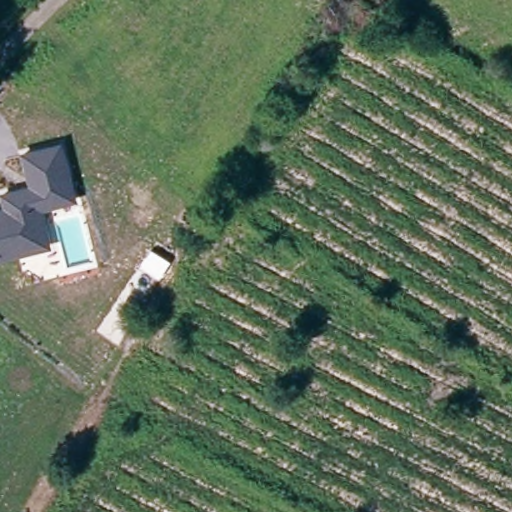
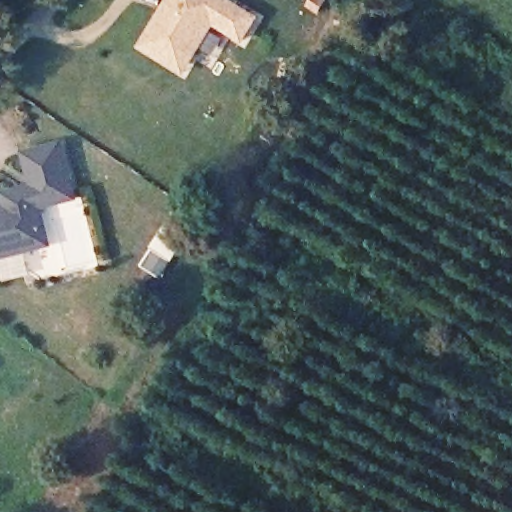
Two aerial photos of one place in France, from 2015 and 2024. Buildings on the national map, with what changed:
new [(244,44),(214,27),(185,75),(138,48),(166,0),(231,0),(260,17),(244,44)]
unchanged [(24,251),(0,257),(0,211),(7,209),(4,194),(25,189),(26,193),(35,190),(25,154),(61,145),(75,200),(39,208),(45,229),(50,246),(24,251)]

